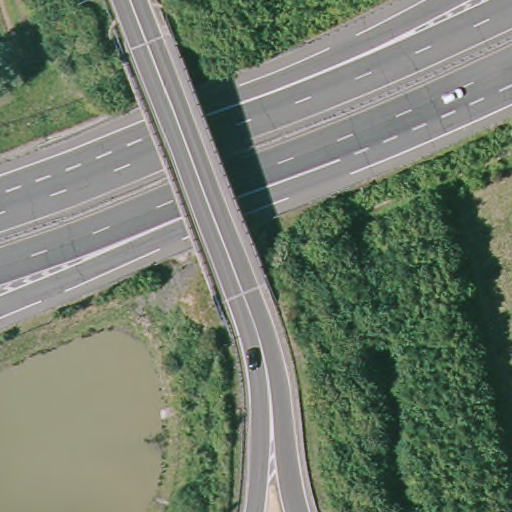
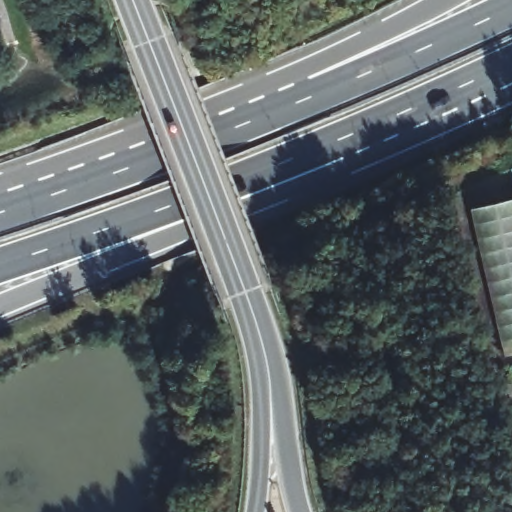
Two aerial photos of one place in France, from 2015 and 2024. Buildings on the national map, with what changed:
new [(467,208),(512,199),(512,358),(498,360),(467,208)]

